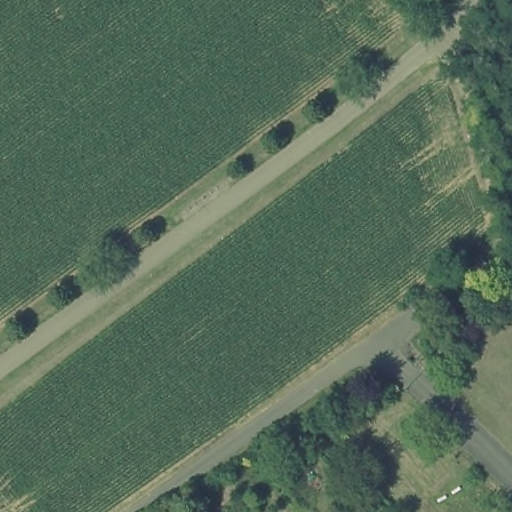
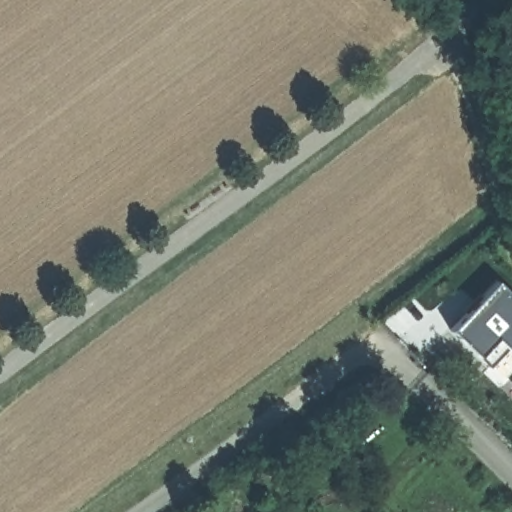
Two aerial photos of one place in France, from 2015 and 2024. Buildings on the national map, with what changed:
new [(512,353),(507,348),(503,345),(489,366),(478,355),(452,328),(497,282),(512,297),(512,353)]

